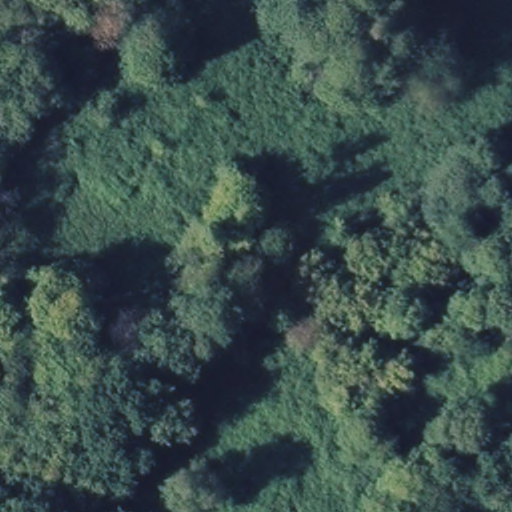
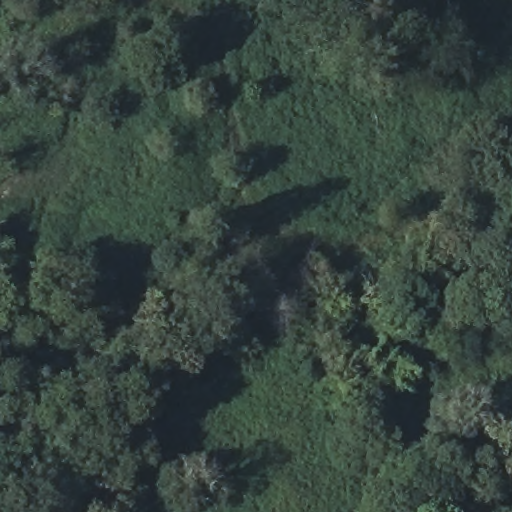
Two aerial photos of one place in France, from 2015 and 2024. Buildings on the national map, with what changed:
unchanged [(381,347),(386,365),(370,367),(365,350),(381,347)]
unchanged [(439,356),(448,394),(428,398),(417,362),(439,356)]
unchanged [(412,385),(413,410),(359,413),(357,387),(412,385)]

